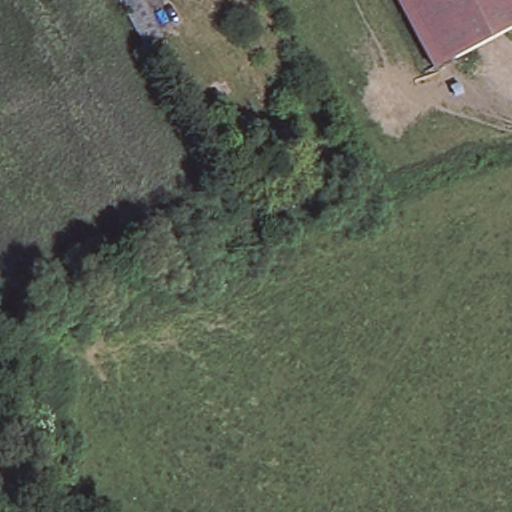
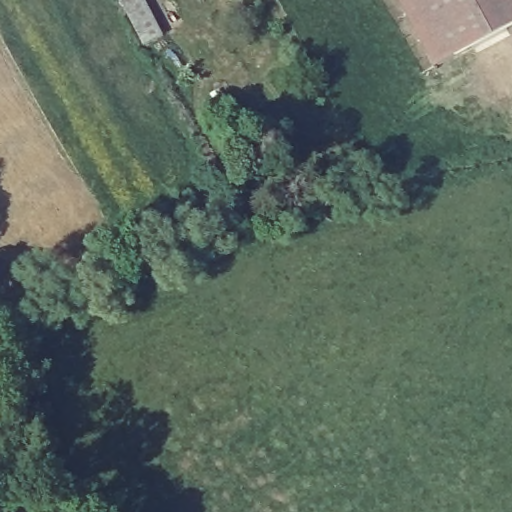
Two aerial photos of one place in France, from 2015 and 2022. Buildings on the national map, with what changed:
unchanged [(408,0),(512,0),(512,22),(448,63),(408,0)]

